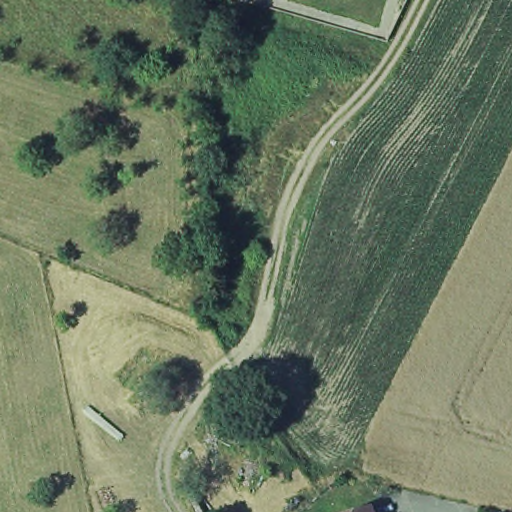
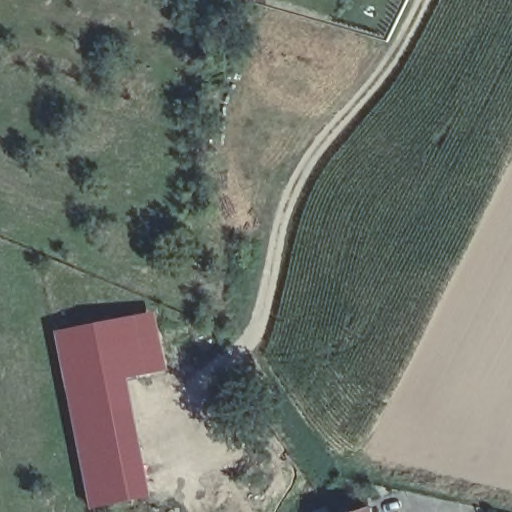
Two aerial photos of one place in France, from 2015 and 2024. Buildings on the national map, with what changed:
new [(57,330),(153,311),(164,369),(124,377),(148,496),(131,499),(108,381),(69,389),(57,330)]
new [(108,381),(131,499),(92,506),(69,389),(108,381)]
unchanged [(372,512),(367,512),(371,511),(372,512)]

